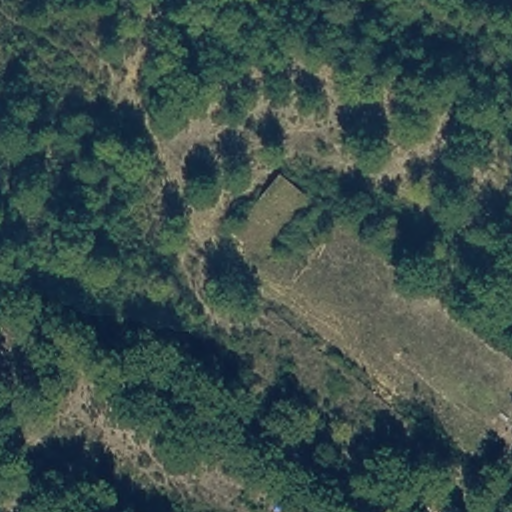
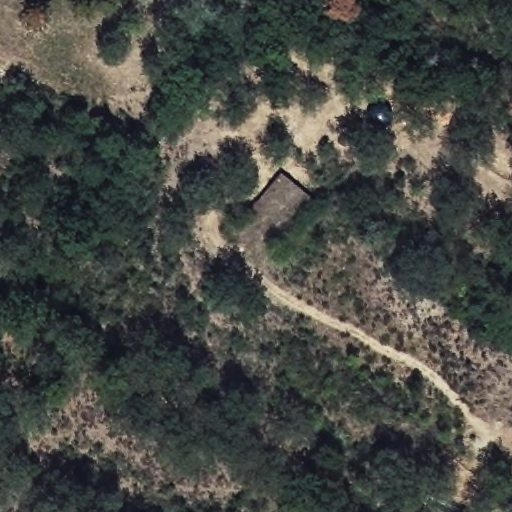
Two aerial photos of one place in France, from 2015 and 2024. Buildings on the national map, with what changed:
unchanged [(468,510),(467,512),(426,512),(432,494),(468,510)]

